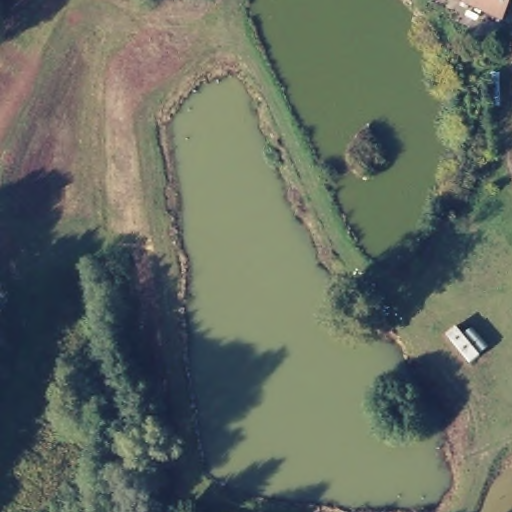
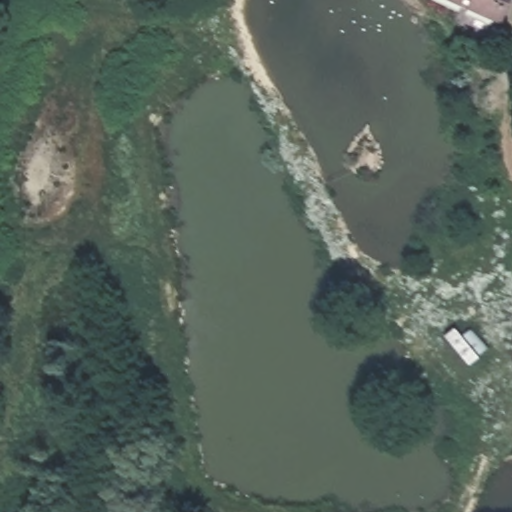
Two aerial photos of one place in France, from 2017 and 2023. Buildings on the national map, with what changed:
unchanged [(498,24),(442,0),(508,0),(498,24)]

